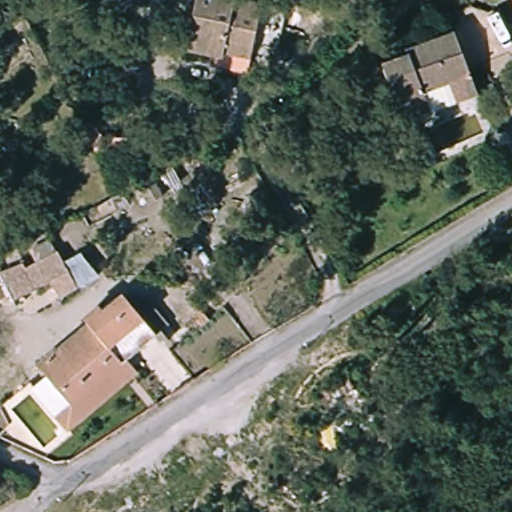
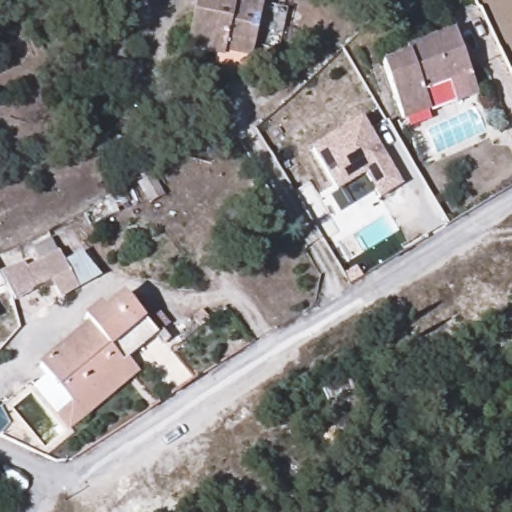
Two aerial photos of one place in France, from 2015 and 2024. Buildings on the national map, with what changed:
unchanged [(228,54),(225,61),(191,54),(205,0),(225,0),(268,10),(256,60),(228,54)]
unchanged [(461,28),(479,75),(429,97),(431,108),(403,117),(381,62),(461,28)]
new [(362,117),(403,186),(381,200),(366,175),(338,192),(311,149),(362,117)]
unchanged [(38,262),(25,251),(55,236),(70,265),(87,254),(102,278),(72,300),(58,281),(27,301),(8,276),(38,262)]
unchanged [(77,410),(67,398),(41,364),(90,325),(84,317),(100,305),(105,312),(130,295),(158,331),(108,367),(117,381),(77,410)]

